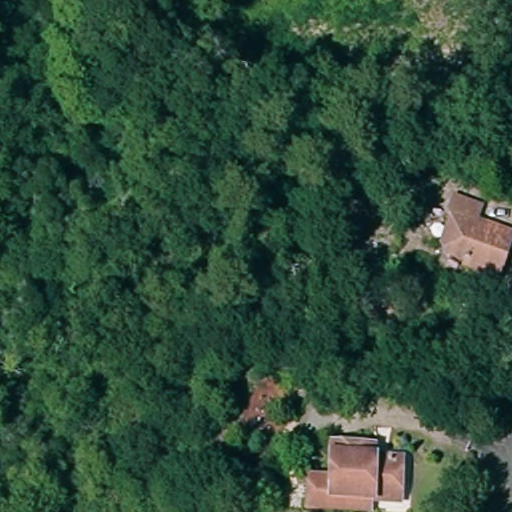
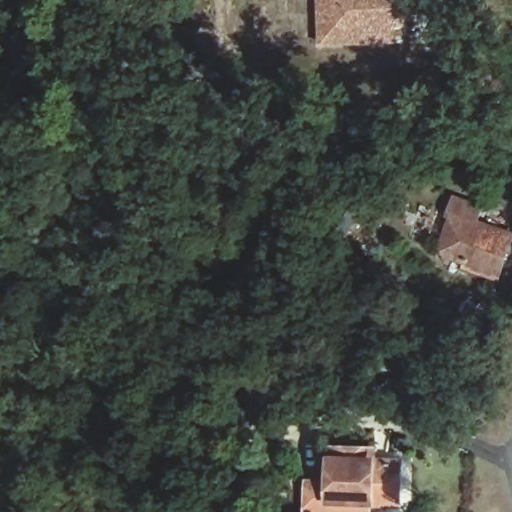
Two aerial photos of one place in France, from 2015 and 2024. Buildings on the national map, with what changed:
new [(392,25),(393,43),(325,46),(322,0),(406,0),(407,23),(392,25)]
unchanged [(482,219),(512,231),(512,238),(498,276),(463,262),(467,253),(440,241),(458,194),(488,206),(482,219)]
unchanged [(355,445),(378,446),(378,462),(410,463),(408,500),(366,500),(332,497),(331,481),(329,444),(355,445)]
unchanged [(332,497),(366,500),(367,512),(309,512),(310,480),(331,481),(332,497)]

